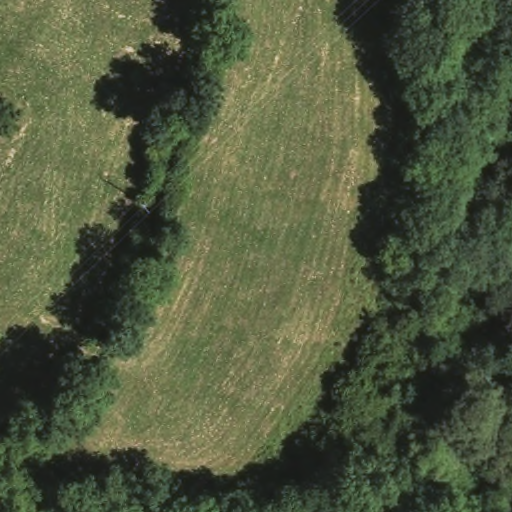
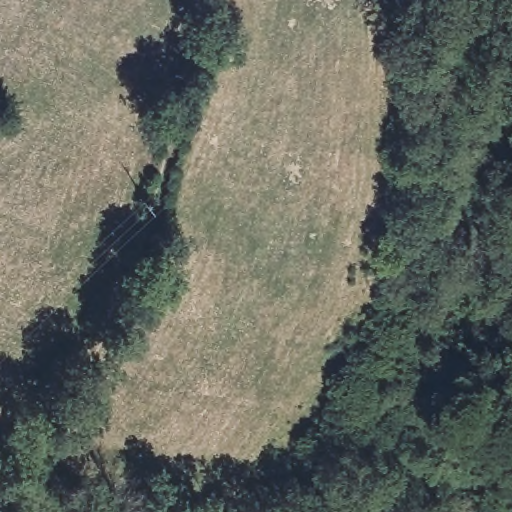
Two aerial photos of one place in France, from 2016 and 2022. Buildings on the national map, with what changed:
[]

